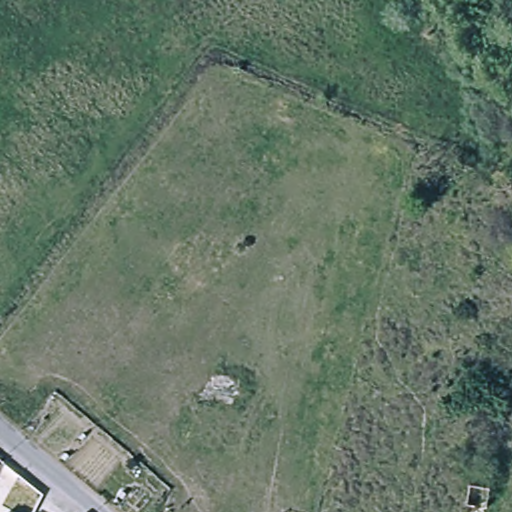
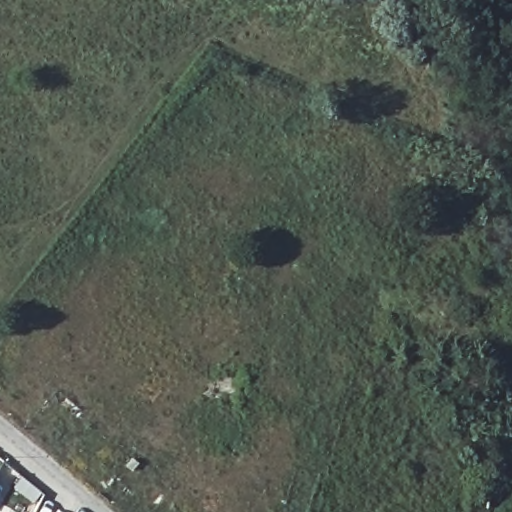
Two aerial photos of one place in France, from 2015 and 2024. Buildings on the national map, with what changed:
unchanged [(465,505),(469,485),(491,489),(487,508),(465,505)]

